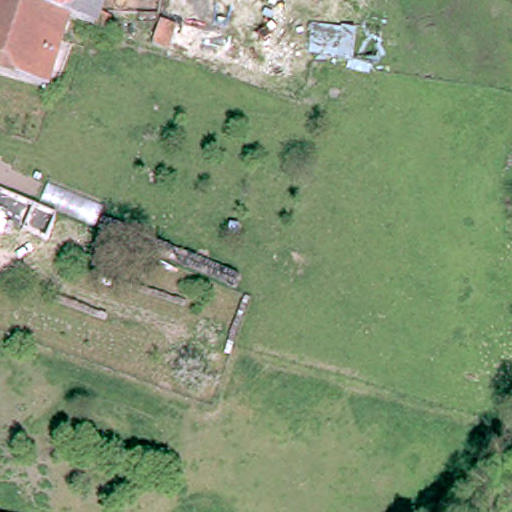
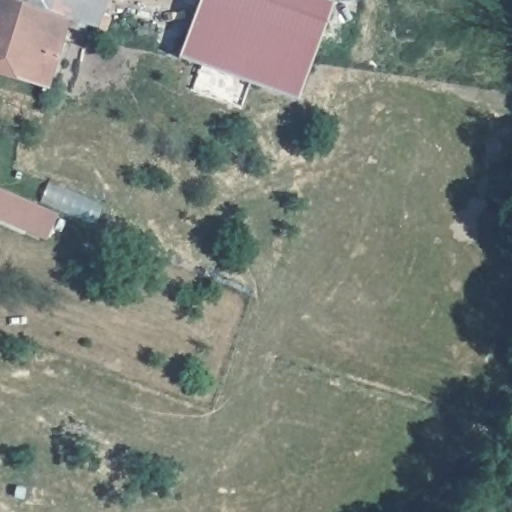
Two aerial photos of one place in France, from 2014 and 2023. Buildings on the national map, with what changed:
unchanged [(0,70),(0,0),(16,0),(65,15),(45,84),(0,70)]
unchanged [(95,24),(95,26),(76,19),(65,15),(16,0),(102,0),(98,12),(109,16),(105,28),(95,24)]
new [(301,104),(184,60),(207,0),(314,0),(336,8),(301,104)]
demolished [(178,21),(170,43),(156,38),(164,16),(178,21)]
demolished [(311,24),(383,36),(375,71),(305,56),(311,24)]
new [(56,213),(46,238),(0,218),(0,187),(56,213)]

